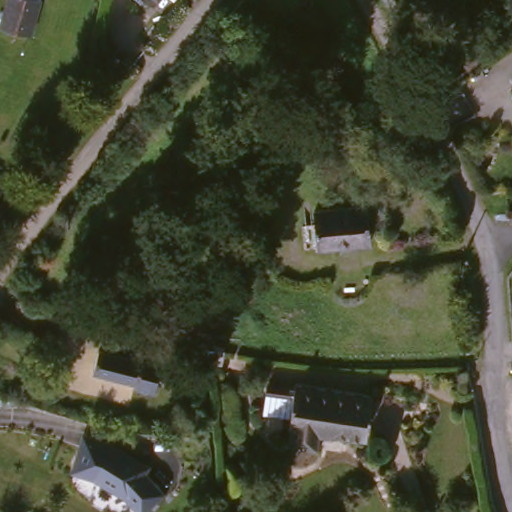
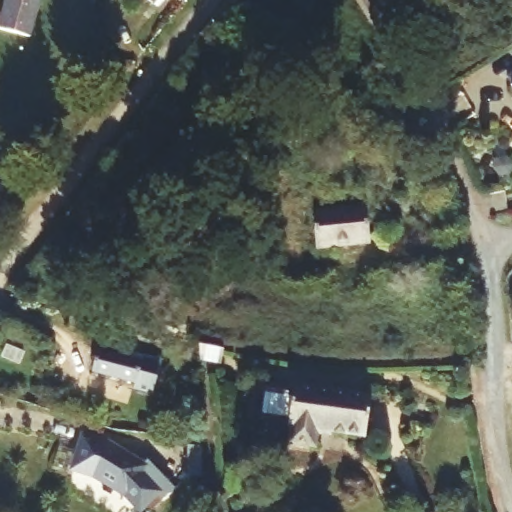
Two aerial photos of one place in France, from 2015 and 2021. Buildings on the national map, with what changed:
unchanged [(32,32),(0,20),(6,0),(36,0),(43,3),(32,32)]
unchanged [(156,0),(153,5),(147,0),(156,0)]
unchanged [(398,0),(386,10),(379,0),(398,0)]
unchanged [(256,142),(253,123),(320,117),(321,136),(256,142)]
unchanged [(48,202),(40,212),(30,206),(37,197),(48,202)]
unchanged [(315,256),(308,214),(362,206),(368,250),(315,256)]
unchanged [(151,363),(143,391),(124,385),(126,378),(83,367),(89,347),(151,363)]
unchanged [(203,367),(202,347),(226,352),(223,370),(203,367)]
unchanged [(323,432),(320,447),(293,443),(295,428),(286,427),(288,417),(263,412),(266,387),(290,390),(291,379),(371,390),(368,439),(323,432)]
unchanged [(109,440),(149,462),(145,468),(162,488),(144,503),(131,488),(98,470),(78,465),(86,434),(109,440)]

